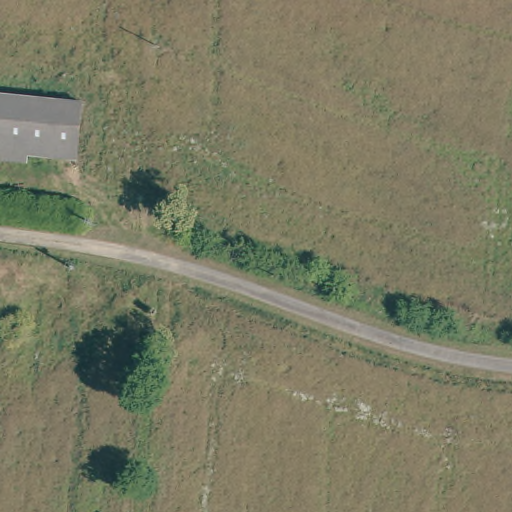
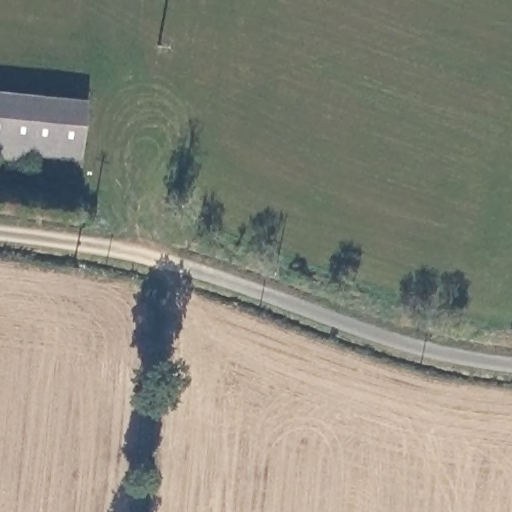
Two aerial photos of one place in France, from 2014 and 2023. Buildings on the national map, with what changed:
unchanged [(77,97),(72,151),(25,148),(24,164),(0,162),(0,91),(77,97)]

